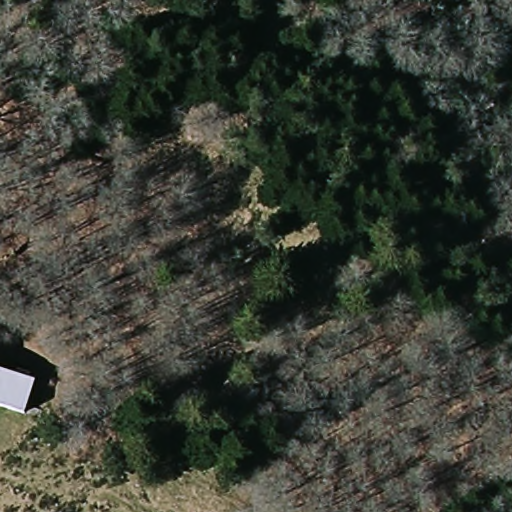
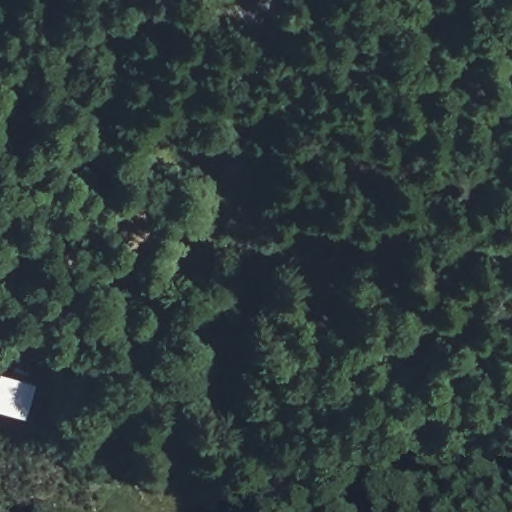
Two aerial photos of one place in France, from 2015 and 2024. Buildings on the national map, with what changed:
unchanged [(21,416),(0,410),(0,373),(33,385),(21,416)]

